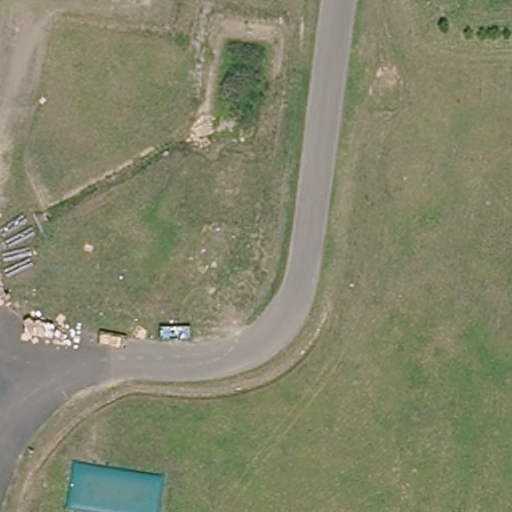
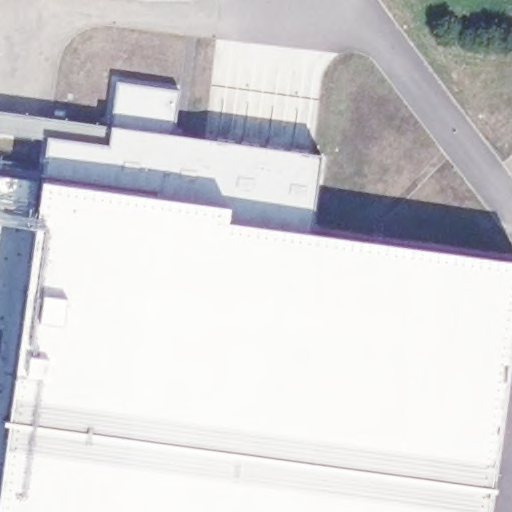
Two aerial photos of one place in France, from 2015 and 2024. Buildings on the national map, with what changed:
new [(320,155),(310,232),(512,262),(512,324),(487,512),(0,512),(0,491),(42,181),(47,137),(110,146),(112,126),(117,83),(179,92),(171,134),(320,155)]

